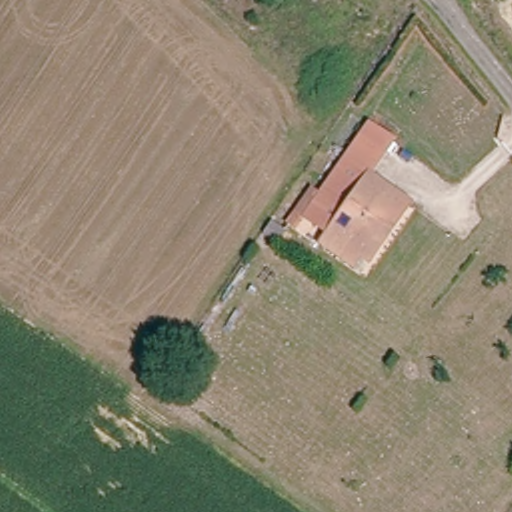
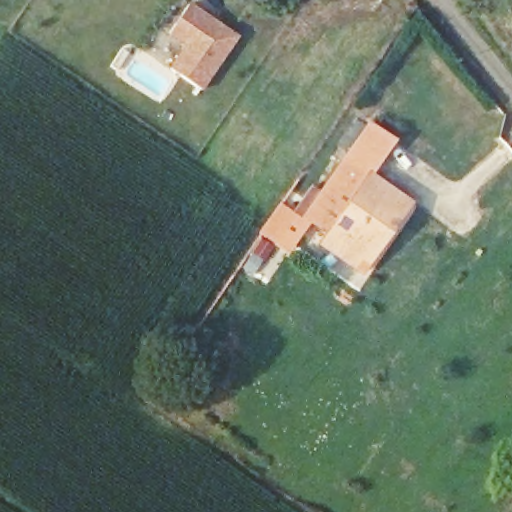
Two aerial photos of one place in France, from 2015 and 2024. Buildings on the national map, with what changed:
new [(169,68),(182,47),(167,35),(189,3),(239,37),(202,92),(169,68)]
unchanged [(340,157),(348,142),(361,121),(386,135),(375,154),(364,172),(340,157)]
unchanged [(320,247),(328,233),(303,218),(340,157),(364,172),(408,200),(370,263),(364,259),(356,271),(320,247)]

